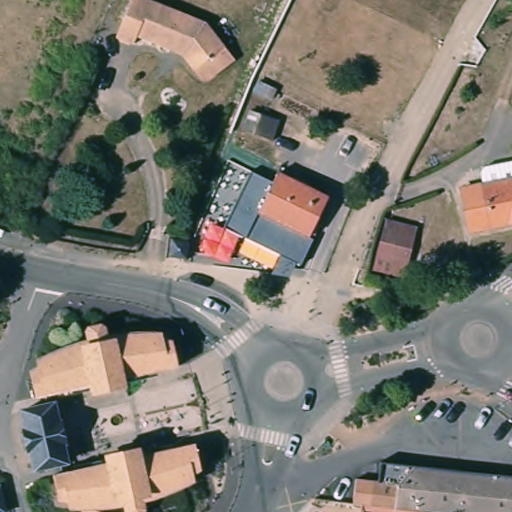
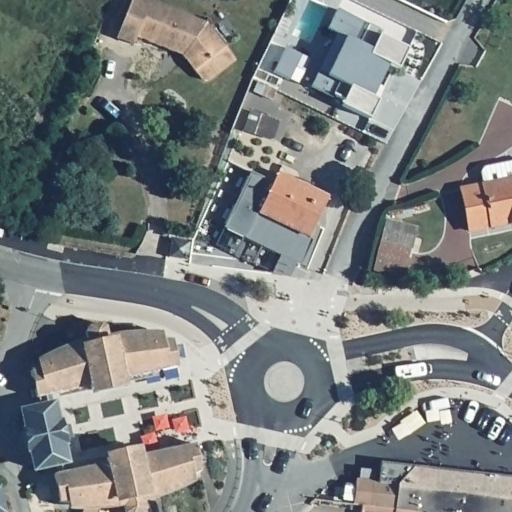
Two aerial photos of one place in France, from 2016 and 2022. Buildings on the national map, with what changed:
unchanged [(211,85),(184,58),(139,40),(136,45),(120,40),(133,0),(147,0),(208,22),(236,64),(211,85)]
new [(377,100),(379,100),(369,119),(341,105),(343,100),(333,95),(332,97),(310,86),(318,70),(327,75),(345,37),(327,29),(336,9),(382,30),(380,35),(408,49),(398,69),(388,64),(378,85),(383,87),(377,100)]
unchanged [(270,115),(280,121),(274,142),(255,134),(261,117),(242,106),(259,72),(248,65),(254,48),(293,70),(270,115)]
unchanged [(292,166),(290,172),(333,192),(311,240),(294,231),(288,244),(254,228),(285,164),(292,166)]
unchanged [(485,185),(482,172),(503,167),(505,172),(512,170),(512,225),(472,235),(462,191),(485,185)]
unchanged [(396,214),(393,224),(386,222),(389,212),(396,214)]
unchanged [(192,240),(188,255),(174,251),(178,236),(192,240)]
unchanged [(407,250),(404,264),(371,257),(375,244),(407,250)]
unchanged [(89,330),(100,328),(105,330),(108,342),(88,346),(85,334),(89,330)]
unchanged [(178,371),(126,381),(127,385),(91,393),(90,390),(36,401),(30,375),(55,361),(83,350),(84,353),(114,347),(113,343),(163,343),(171,343),(172,345),(178,371)]
unchanged [(26,432),(21,415),(54,407),(58,426),(61,426),(66,447),(62,448),(66,465),(35,473),(31,455),(28,455),(22,433),(26,432)]
unchanged [(110,473),(109,467),(145,460),(146,465),(200,453),(206,480),(180,493),(152,503),(151,500),(123,507),(123,510),(104,512),(63,510),(58,484),(110,473)]
unchanged [(374,483),(395,485),(416,465),(512,472),(512,512),(412,512),(362,508),(362,491),(366,491),(374,483)]
unchanged [(148,512),(132,512),(147,508),(148,512)]

